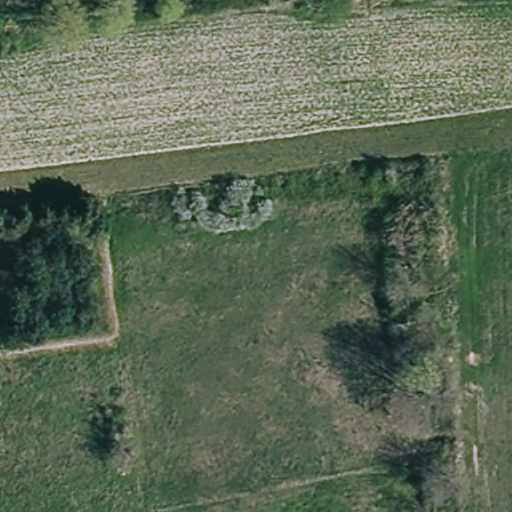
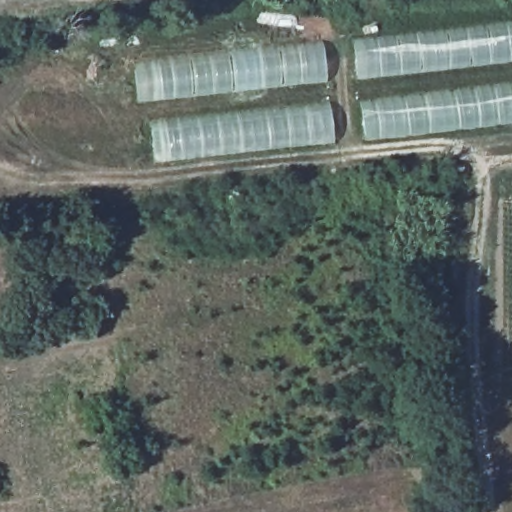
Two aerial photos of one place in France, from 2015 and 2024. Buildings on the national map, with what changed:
new [(512,22),(512,61),(357,79),(353,41),(512,22)]
new [(327,81),(138,102),(133,64),(323,42),(327,81)]
new [(365,140),(362,102),(512,85),(512,123),(365,140)]
new [(331,103),(335,141),(157,162),(150,124),(331,103)]

